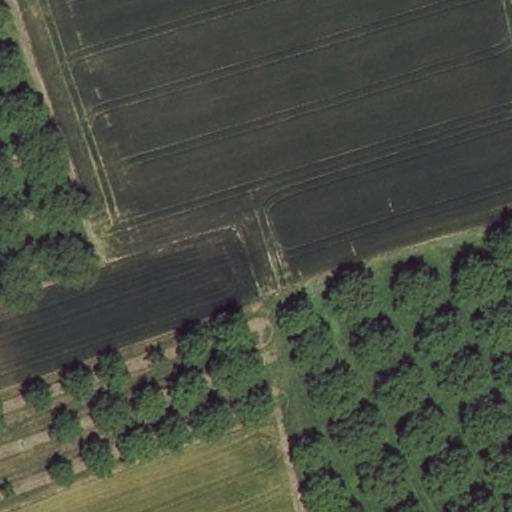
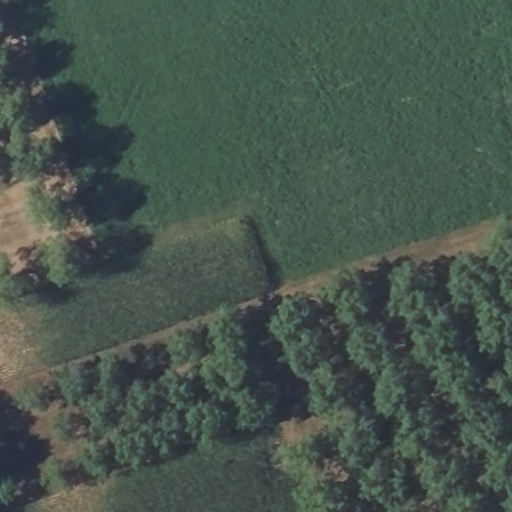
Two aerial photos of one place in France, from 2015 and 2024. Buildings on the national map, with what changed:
[]

